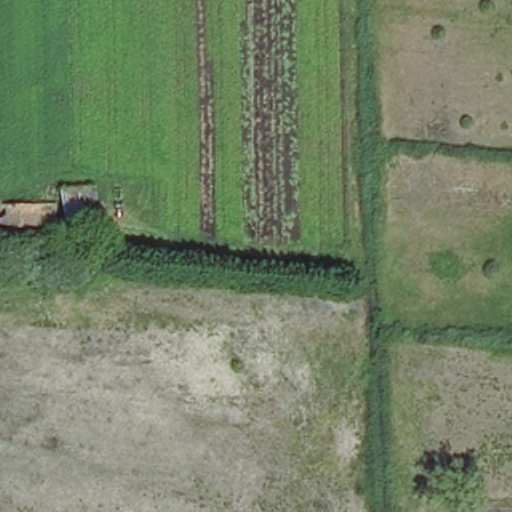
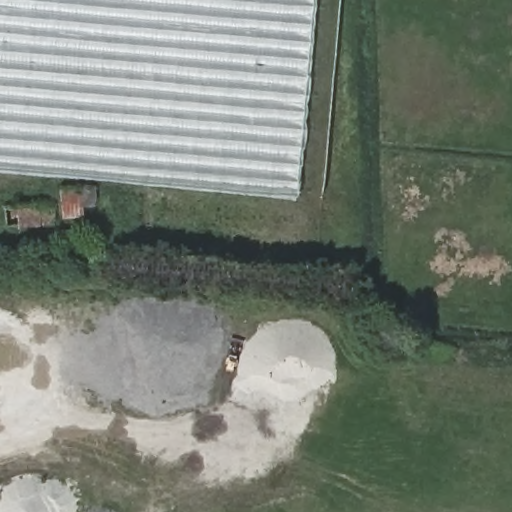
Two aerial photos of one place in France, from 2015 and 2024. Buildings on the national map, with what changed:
new [(0,168),(0,0),(316,0),(299,194),(0,168)]
unchanged [(87,217),(71,218),(71,194),(86,191),(87,217)]
unchanged [(0,207),(63,205),(63,226),(0,229),(0,207)]

